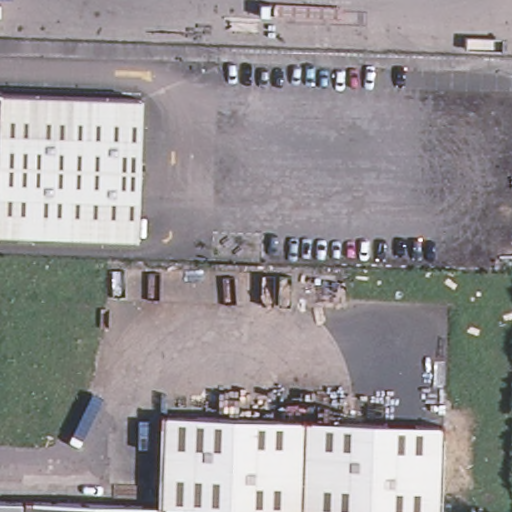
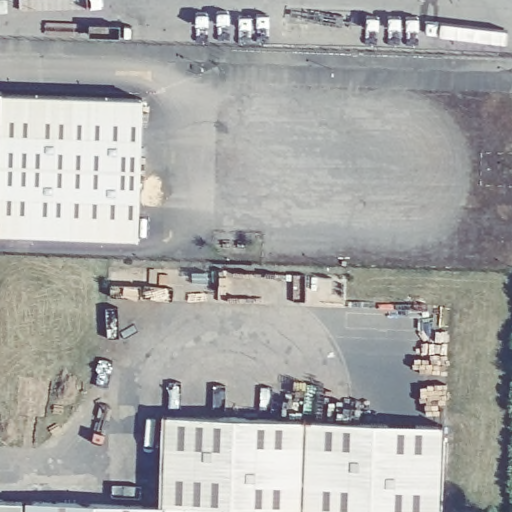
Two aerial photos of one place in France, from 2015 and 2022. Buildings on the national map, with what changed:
unchanged [(138,242),(0,235),(0,96),(146,104),(138,242)]
unchanged [(442,424),(441,512),(177,512),(162,512),(164,415),(442,424)]
unchanged [(106,512),(24,512),(24,509),(106,512)]

